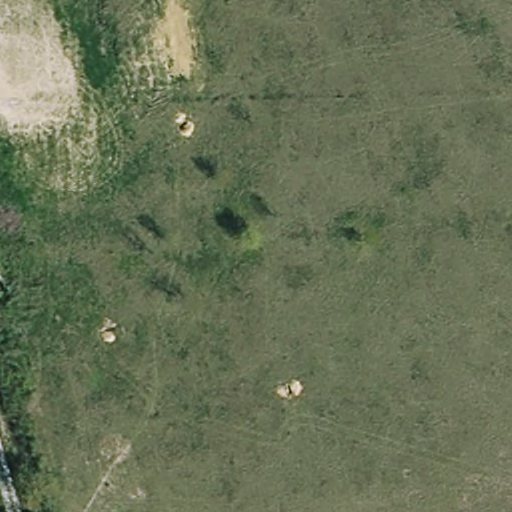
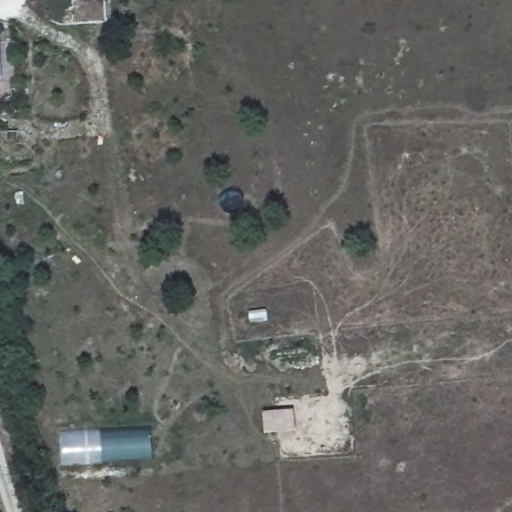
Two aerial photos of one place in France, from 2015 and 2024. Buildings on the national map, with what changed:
unchanged [(0,83),(0,56),(1,82),(0,83)]
new [(151,431),(153,458),(61,463),(60,434),(151,431)]

